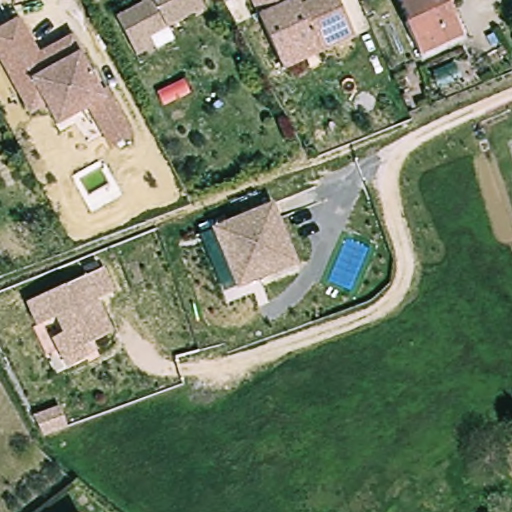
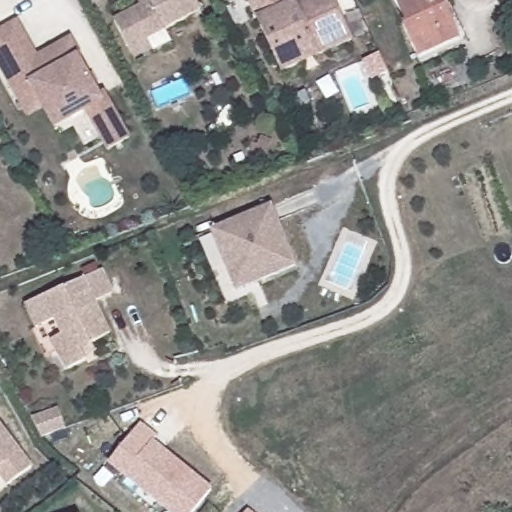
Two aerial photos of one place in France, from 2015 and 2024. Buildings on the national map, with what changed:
unchanged [(117,14),(144,1),(143,0),(199,0),(203,7),(150,34),(154,43),(136,52),(132,43),(117,14)]
unchanged [(264,38),(246,0),(304,0),(305,1),(308,0),(327,0),(345,38),(311,53),(278,68),(264,38)]
unchanged [(448,14),(461,44),(420,62),(406,29),(410,28),(398,0),(446,0),(452,12),(448,14)]
unchanged [(28,115),(25,108),(0,62),(0,30),(18,19),(38,55),(71,37),(81,54),(78,56),(99,93),(105,90),(130,137),(108,148),(87,109),(71,118),(55,126),(45,106),(28,115)]
unchanged [(213,225),(269,202),(293,259),(236,282),(213,225)]
unchanged [(82,355),(83,358),(64,367),(51,340),(63,335),(58,325),(39,334),(25,304),(100,269),(111,292),(93,300),(108,332),(89,341),(93,350),(82,355)]
unchanged [(59,405),(66,426),(43,434),(33,414),(59,405)]
new [(7,485),(0,476),(0,423),(33,466),(7,485)]
new [(193,512),(167,512),(107,464),(141,423),(156,436),(153,440),(211,488),(193,512)]

